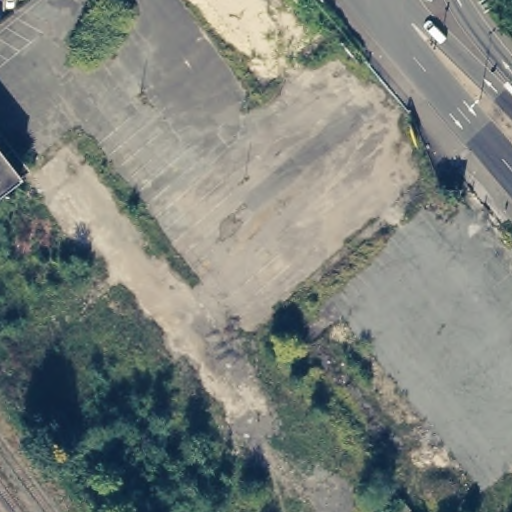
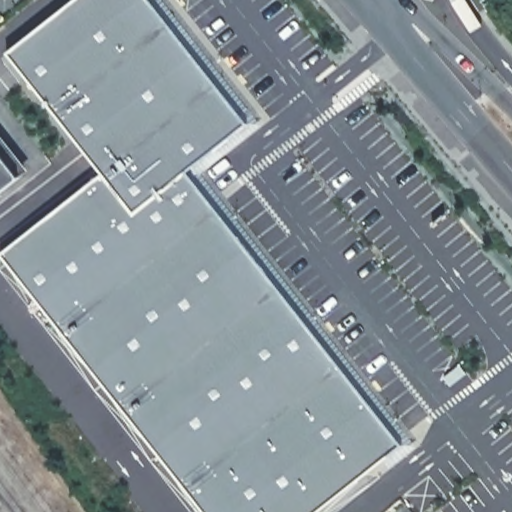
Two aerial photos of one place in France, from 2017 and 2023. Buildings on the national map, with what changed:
new [(1,253),(102,174),(7,52),(74,0),(150,0),(248,124),(187,172),(402,444),(316,512),(206,512),(1,253)]
unchanged [(12,167),(0,152),(0,129),(23,159),(12,167)]
unchanged [(0,176),(0,152),(12,167),(0,176)]

